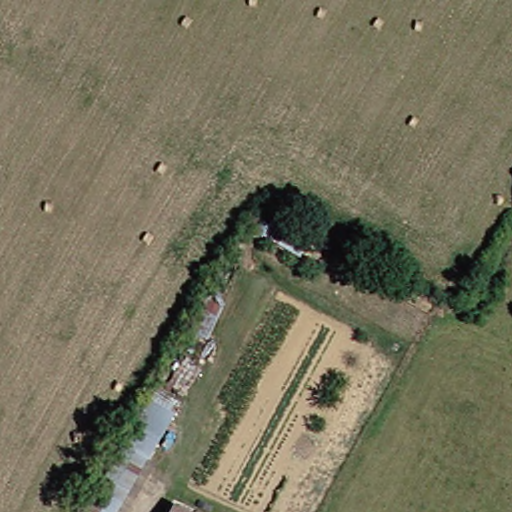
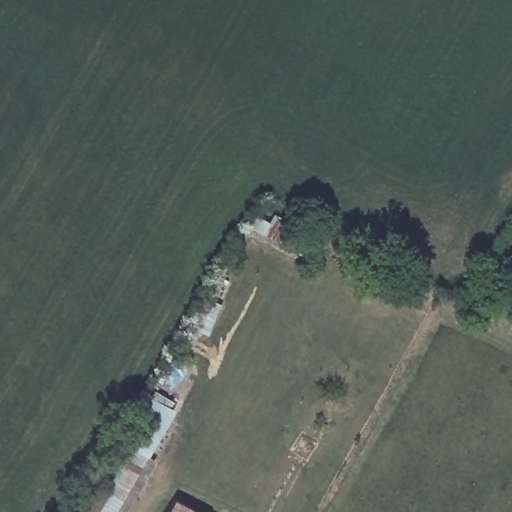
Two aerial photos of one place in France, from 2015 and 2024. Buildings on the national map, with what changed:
unchanged [(131,512),(84,512),(151,398),(180,412),(131,512)]
unchanged [(181,502),(199,512),(176,512),(181,502)]

